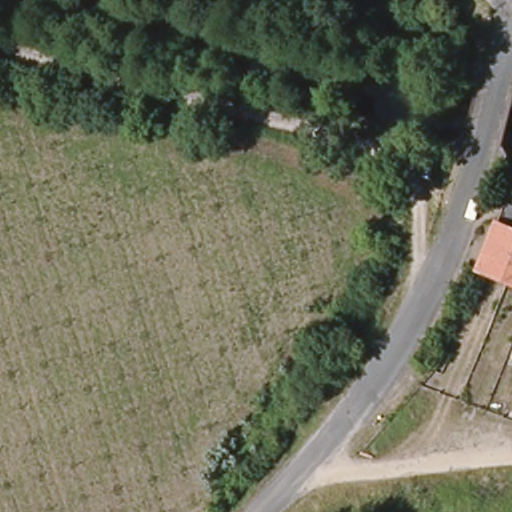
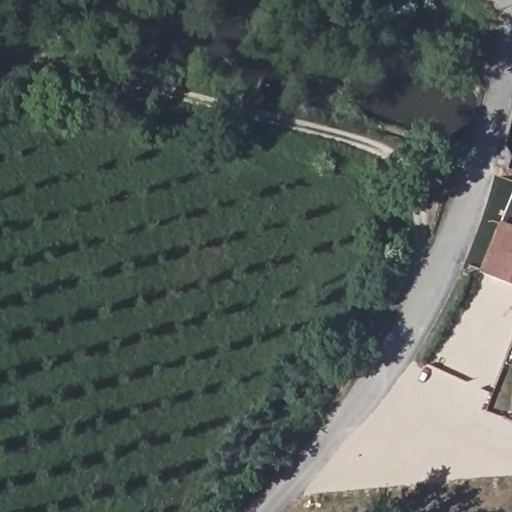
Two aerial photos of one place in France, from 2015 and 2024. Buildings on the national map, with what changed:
unchanged [(480,270),(503,206),(512,209),(512,282),(480,270)]

